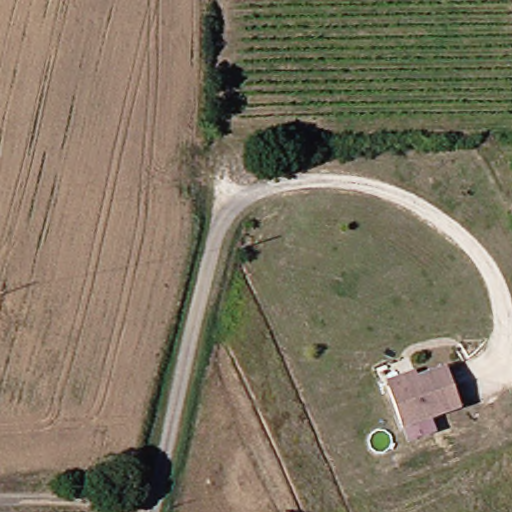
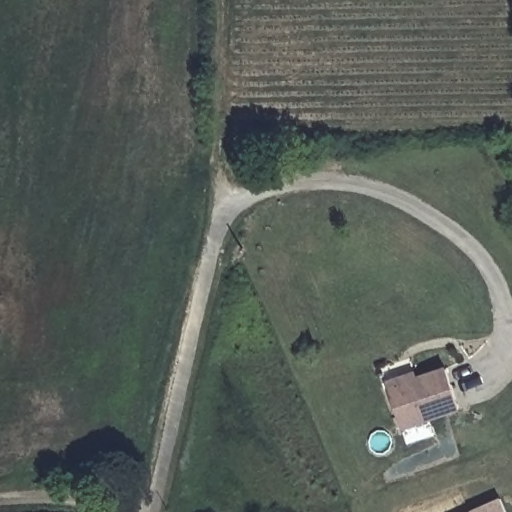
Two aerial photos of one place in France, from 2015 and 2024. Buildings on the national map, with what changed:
unchanged [(461,406),(433,414),(438,433),(409,442),(391,385),(389,379),(417,370),(419,376),(448,366),(461,406)]
new [(506,512),(471,512),(500,498),(506,512)]

